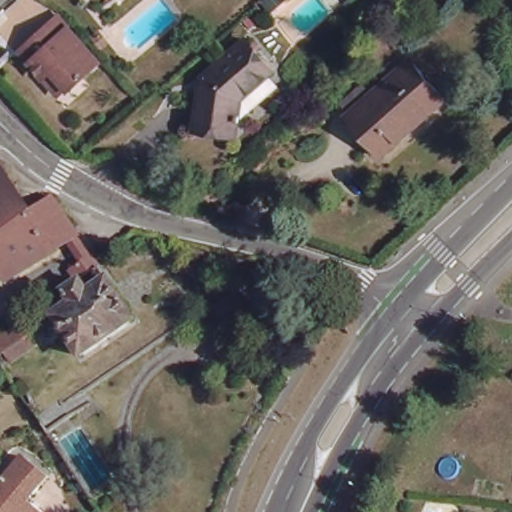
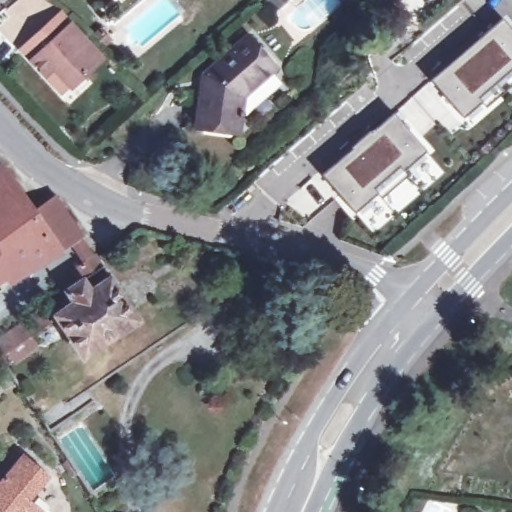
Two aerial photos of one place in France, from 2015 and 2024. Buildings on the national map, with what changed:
unchanged [(42,69),(31,56),(24,47),(54,21),(62,13),(71,24),(97,54),(66,80),(59,88),(42,69)]
new [(463,116),(432,80),(502,19),(512,31),(512,67),(477,98),(480,102),(463,116)]
unchanged [(243,33),(268,62),(237,90),(233,127),(194,123),(200,71),(243,33)]
demolished [(450,99),(388,153),(354,114),(415,60),(450,99)]
new [(322,174),(393,113),(426,151),(354,211),(322,174)]
unchanged [(38,210),(60,196),(76,219),(87,234),(86,240),(81,243),(78,238),(0,281),(0,173),(8,167),(38,210)]
unchanged [(101,281),(93,268),(103,262),(108,261),(112,261),(118,269),(153,320),(99,357),(73,319),(80,314),(71,302),(73,300),(101,281)]
unchanged [(236,289),(242,286),(258,310),(229,328),(214,305),(236,289)]
unchanged [(5,348),(15,341),(36,326),(57,312),(65,324),(44,338),(54,352),(33,367),(25,356),(15,362),(6,349),(5,348)]
unchanged [(29,499),(44,512),(0,512),(0,484),(25,454),(49,474),(29,499)]

